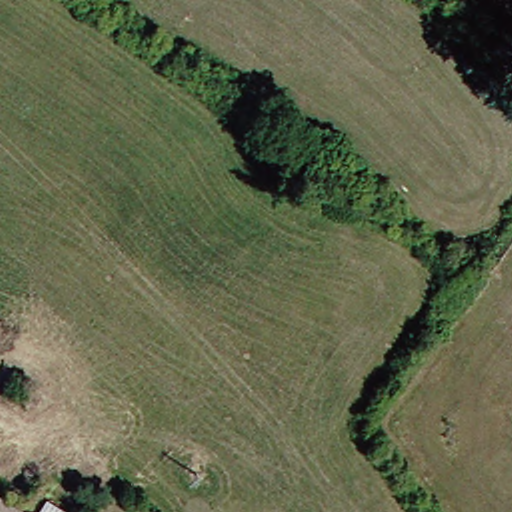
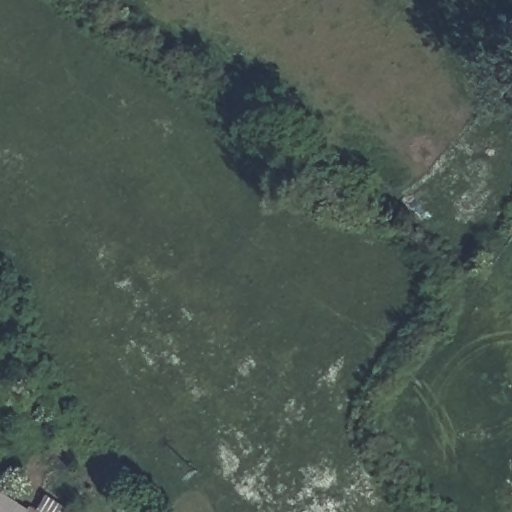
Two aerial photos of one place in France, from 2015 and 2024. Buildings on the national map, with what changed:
unchanged [(32,512),(0,512),(0,493),(33,511),(32,512)]
unchanged [(45,512),(32,512),(33,511),(35,505),(45,512)]

